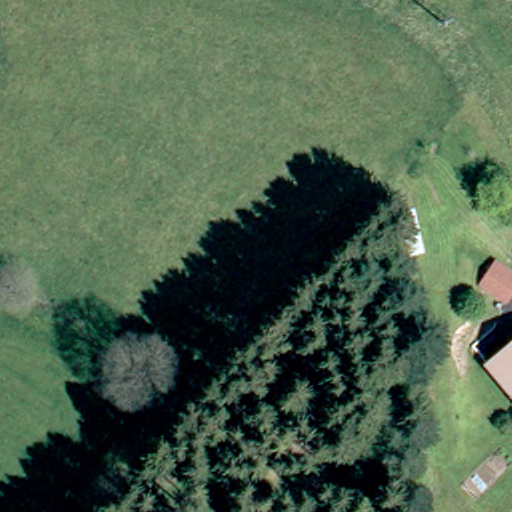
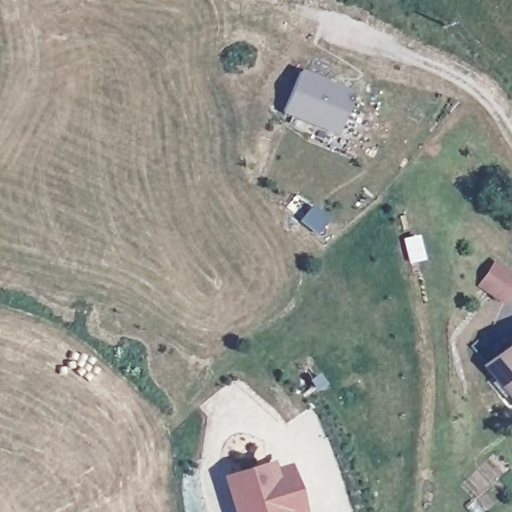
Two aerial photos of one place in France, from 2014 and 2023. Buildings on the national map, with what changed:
new [(338,134),(285,113),(302,69),(355,91),(338,134)]
new [(416,209),(425,253),(409,257),(398,212),(416,209)]
unchanged [(510,302),(477,285),(490,260),(512,271),(512,298),(510,302)]
unchanged [(479,361),(512,334),(512,390),(507,394),(479,361)]
new [(235,512),(224,476),(273,460),(275,466),(290,461),(305,512),(235,512)]

